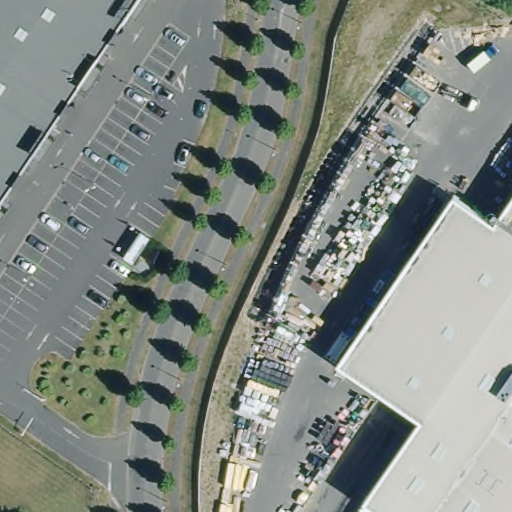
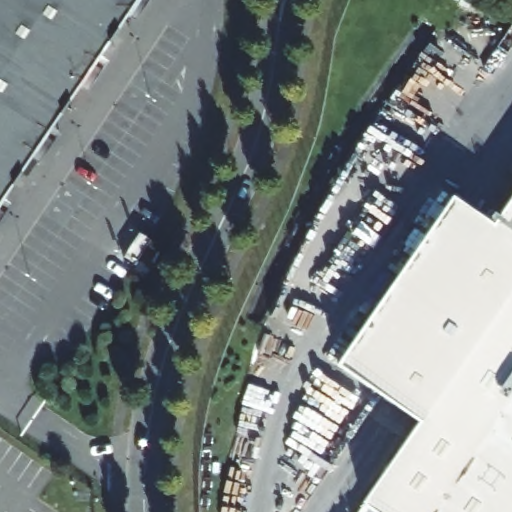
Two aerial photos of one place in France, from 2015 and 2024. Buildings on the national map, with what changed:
unchanged [(120,39),(73,110),(0,61),(0,0),(63,0),(120,39)]
unchanged [(120,39),(63,0),(147,0),(120,39)]
unchanged [(24,182),(0,165),(0,61),(73,110),(24,182)]
unchanged [(24,182),(0,217),(0,165),(24,182)]
unchanged [(419,423),(336,366),(453,197),(494,225),(512,197),(512,512),(372,512),(363,506),(419,423)]

